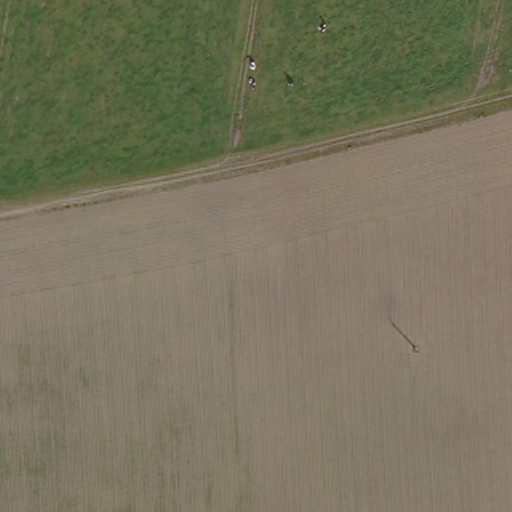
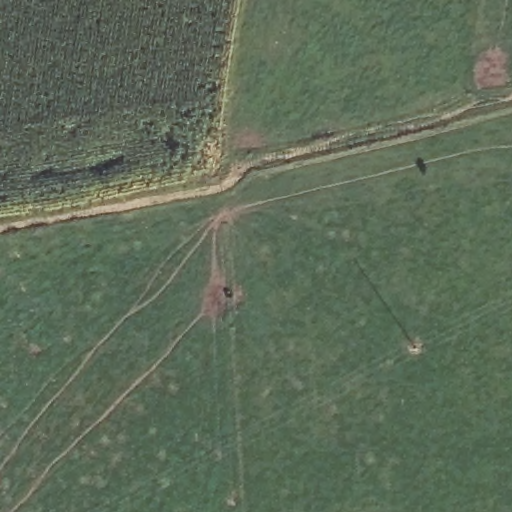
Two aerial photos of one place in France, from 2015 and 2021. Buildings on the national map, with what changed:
[]

